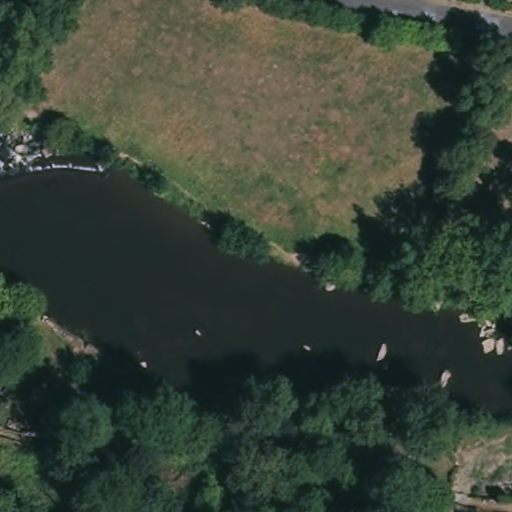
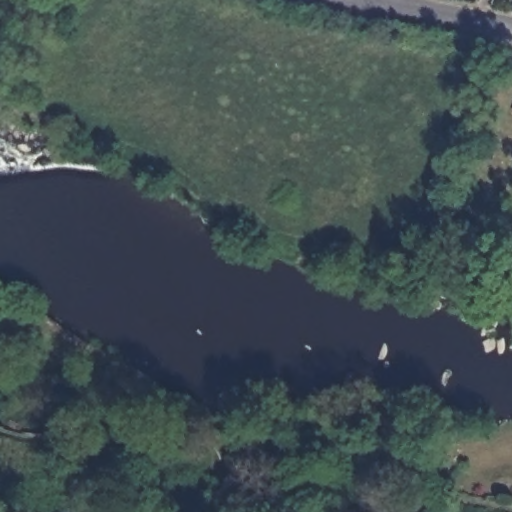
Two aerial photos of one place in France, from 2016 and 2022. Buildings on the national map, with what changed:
unchanged [(512,98),(512,102),(510,101),(512,98)]

